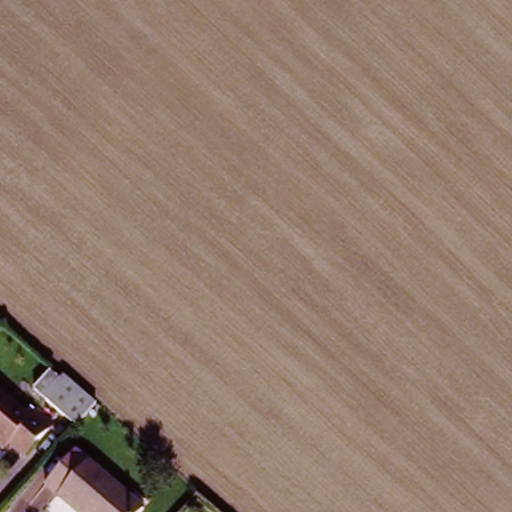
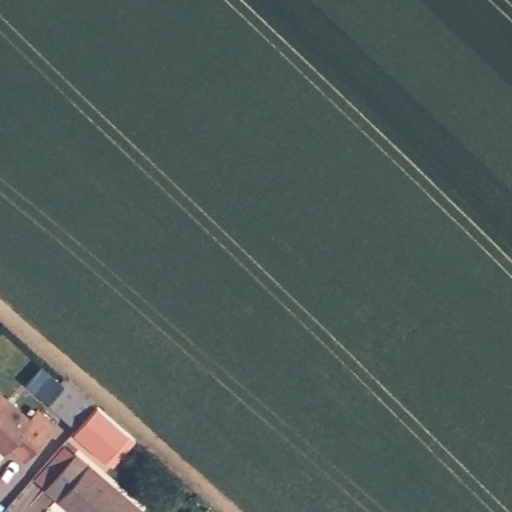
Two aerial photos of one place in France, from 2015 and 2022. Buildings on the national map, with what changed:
unchanged [(76,430),(48,403),(61,386),(46,373),(52,368),(66,380),(95,406),(76,430)]
unchanged [(0,448),(0,393),(29,416),(35,408),(50,420),(21,454),(7,442),(1,449),(0,448)]
new [(97,403),(136,438),(111,467),(72,435),(76,430),(95,406),(97,403)]
unchanged [(78,512),(49,487),(77,455),(142,509),(139,512),(78,512)]

